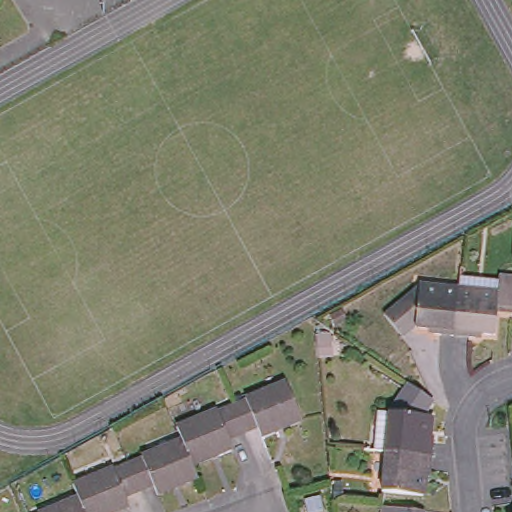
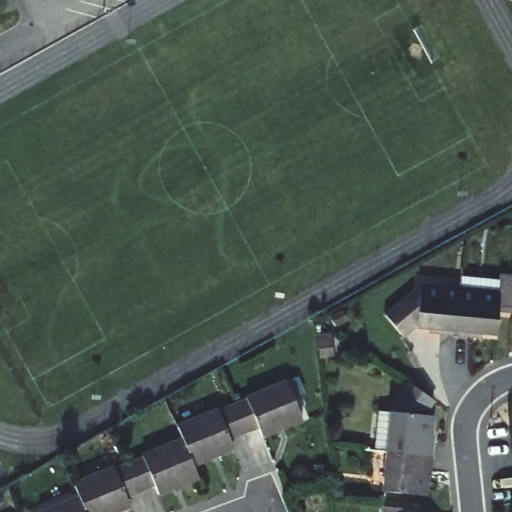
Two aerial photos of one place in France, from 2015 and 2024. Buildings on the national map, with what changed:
unchanged [(453,337),(457,295),(459,282),(498,287),(498,281),(512,282),(512,300),(511,310),(497,308),(494,336),(480,335),(480,340),(473,339),(453,337)]
unchanged [(428,329),(416,328),(400,336),(385,310),(400,302),(417,303),(417,291),(457,295),(453,337),(434,335),(428,335),(428,329)]
unchanged [(512,300),(512,310),(511,310),(512,300)]
unchanged [(334,328),(328,317),(341,311),(347,322),(334,328)]
unchanged [(332,357),(317,358),(316,342),(330,340),(332,357)]
unchanged [(267,437),(262,427),(232,438),(237,450),(197,466),(202,479),(162,495),(157,486),(128,497),(132,507),(120,512),(44,512),(82,497),(77,485),(117,468),(118,471),(147,459),(145,456),(185,440),(180,427),(220,410),(222,413),(251,401),(250,398),(290,382),(305,422),(267,437)]
unchanged [(381,412),(435,416),(433,436),(438,437),(436,457),(390,452),(377,451),(381,412)]
unchanged [(436,457),(434,477),(429,476),(427,496),(387,492),(390,452),(436,457)]
unchanged [(342,502),(333,502),(333,486),(342,487),(342,502)]

